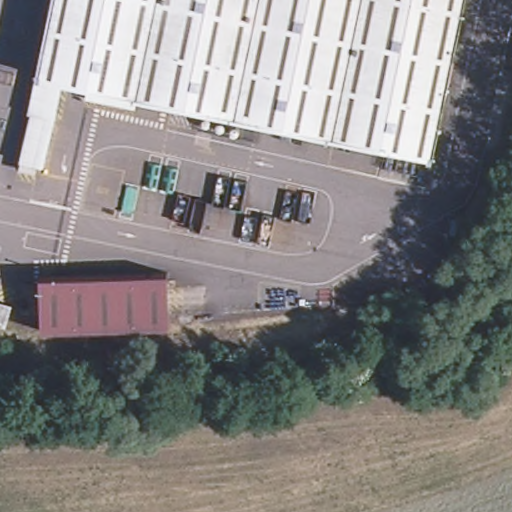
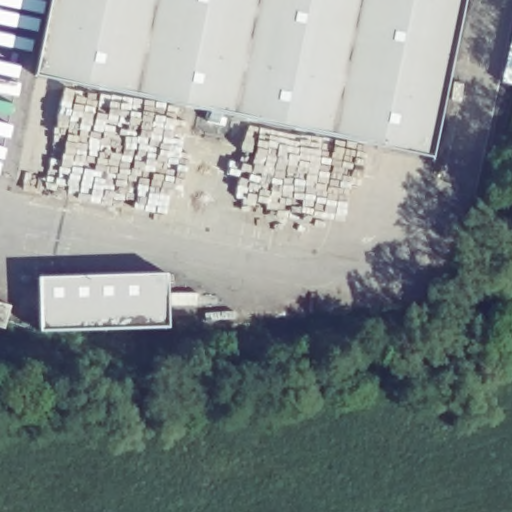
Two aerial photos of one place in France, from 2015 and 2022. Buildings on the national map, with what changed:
unchanged [(394,141),(282,120),(278,136),(240,129),(242,112),(214,106),(73,80),(46,75),(60,0),(466,0),(460,36),(439,149),(428,147),(425,169),(390,162),(394,141)]
unchanged [(66,118),(39,114),(46,75),(73,80),(66,118)]
unchanged [(166,278),(168,330),(35,336),(33,282),(166,278)]

